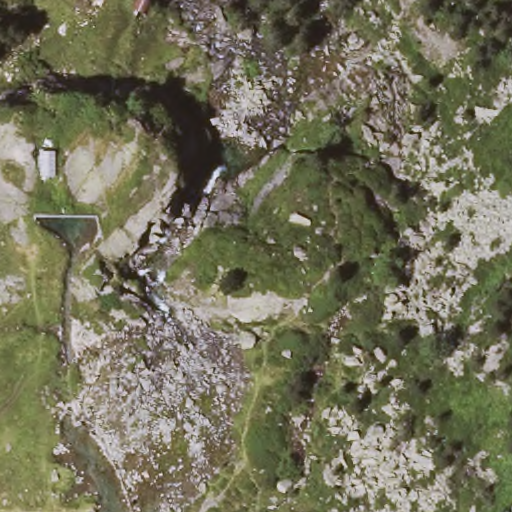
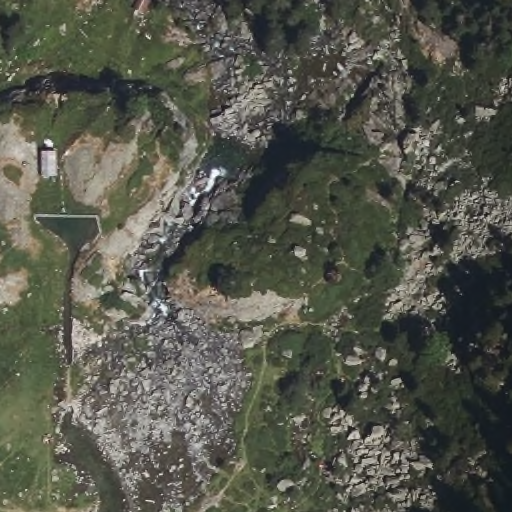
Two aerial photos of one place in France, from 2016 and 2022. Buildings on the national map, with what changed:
unchanged [(60,156),(59,181),(43,180),(44,155),(60,156)]

